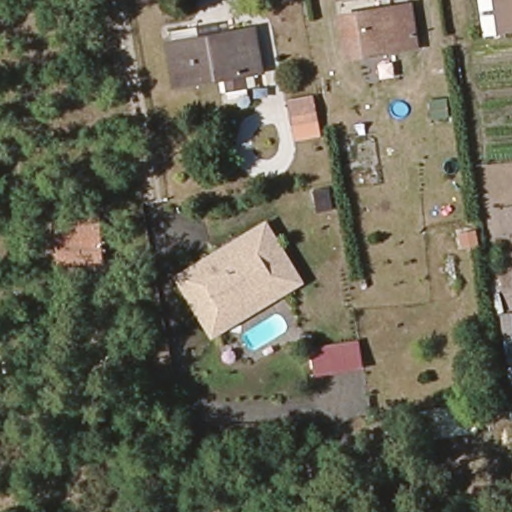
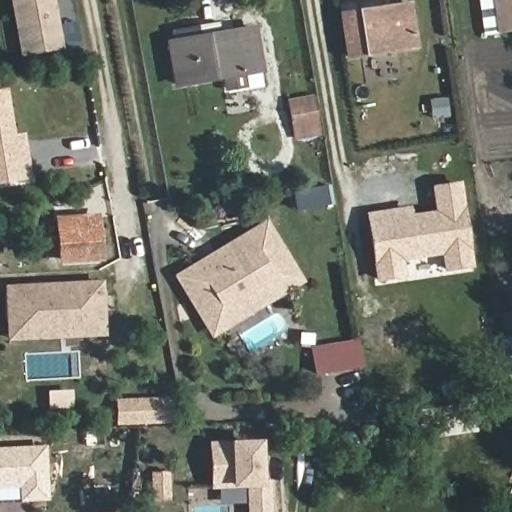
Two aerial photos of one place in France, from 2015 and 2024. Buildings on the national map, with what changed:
new [(56,45),(19,52),(9,0),(48,0),(56,45)]
unchanged [(501,31),(498,0),(512,0),(512,30),(501,31)]
unchanged [(419,52),(346,60),(341,13),(412,4),(419,52)]
unchanged [(258,27),(265,74),(222,80),(214,35),(258,27)]
unchanged [(222,80),(174,87),(166,43),(214,35),(222,80)]
new [(9,135),(18,133),(25,176),(0,180),(0,89),(1,89),(9,135)]
unchanged [(295,143),(285,100),(313,95),(322,137),(295,143)]
new [(388,210),(389,217),(433,211),(430,185),(454,182),(465,263),(441,266),(439,249),(395,255),(397,273),(374,276),(365,213),(388,210)]
unchanged [(63,264),(58,235),(56,226),(92,221),(93,229),(97,259),(63,264)]
unchanged [(212,339),(172,275),(266,221),(305,283),(212,339)]
demolished [(343,262),(352,312),(320,317),(312,268),(343,262)]
new [(5,321),(3,286),(96,280),(99,331),(63,332),(6,335),(5,321)]
new [(358,339),(363,367),(314,375),(309,347),(358,339)]
new [(116,425),(116,400),(164,399),(164,423),(116,425)]
new [(263,483),(270,483),(271,512),(247,512),(247,507),(241,503),(221,504),(221,493),(209,486),(208,442),(228,442),(261,440),(263,483)]
new [(46,501),(20,502),(20,488),(0,488),(0,448),(45,445),(46,501)]

